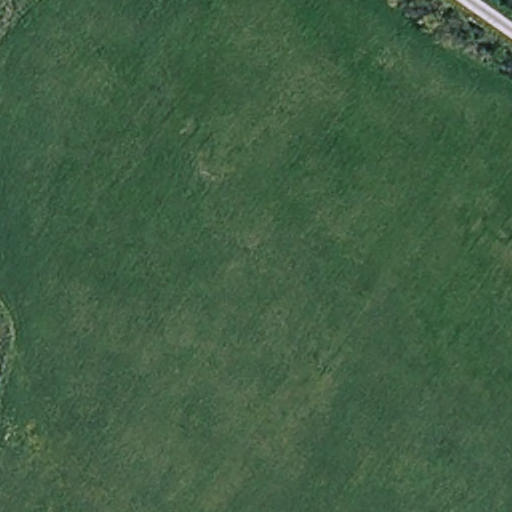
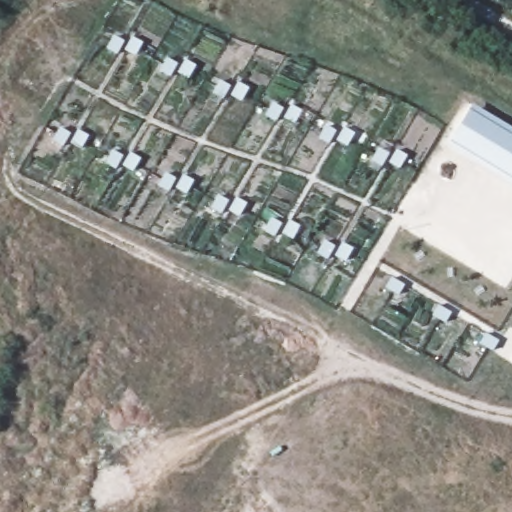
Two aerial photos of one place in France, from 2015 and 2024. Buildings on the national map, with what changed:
new [(452,141),(471,110),(473,105),(512,129),(512,186),(448,148),(452,141)]

